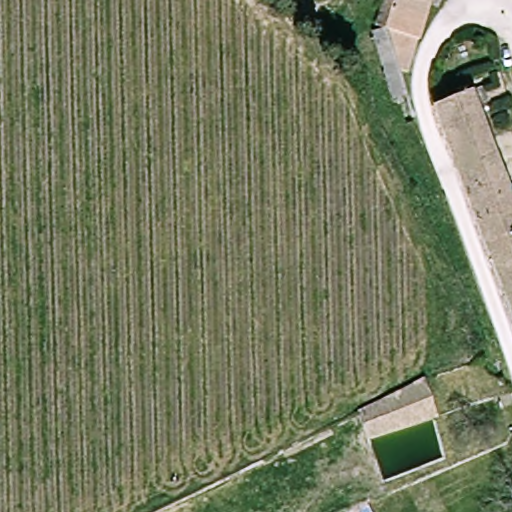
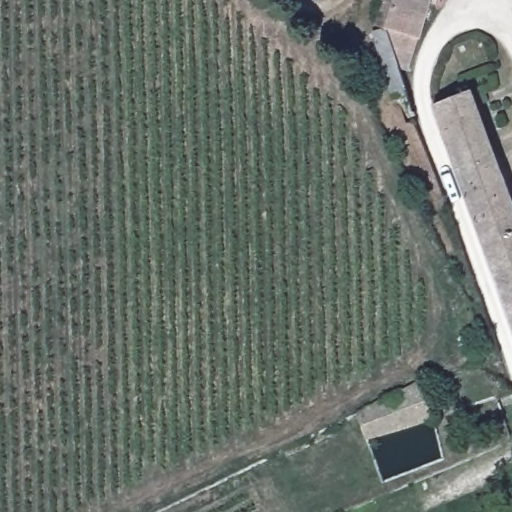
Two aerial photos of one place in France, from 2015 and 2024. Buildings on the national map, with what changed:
unchanged [(433,0),(429,16),(390,27),(396,0),(433,0)]
unchanged [(485,104),(512,187),(512,313),(449,116),(485,104)]
unchanged [(435,414),(370,445),(363,414),(423,384),(435,414)]

